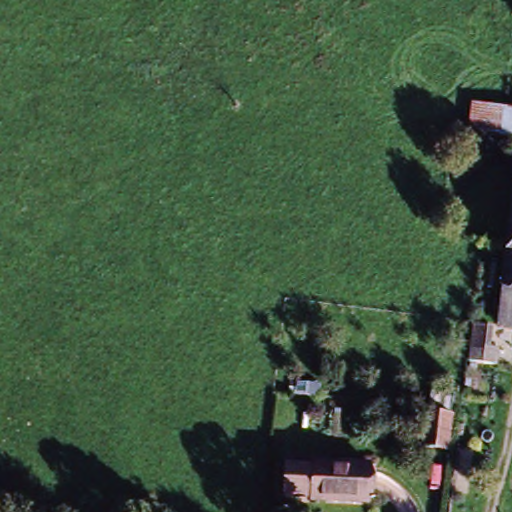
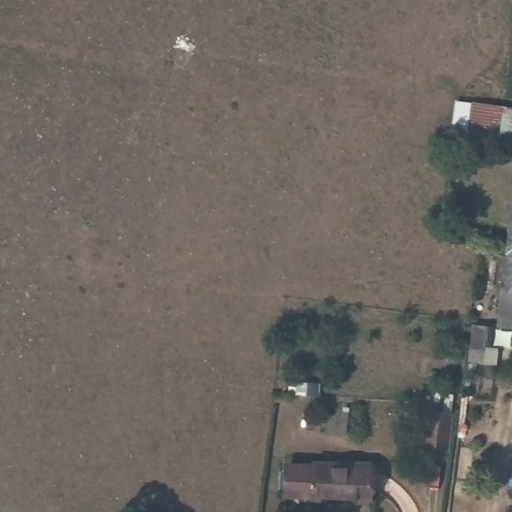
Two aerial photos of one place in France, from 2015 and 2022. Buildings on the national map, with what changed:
unchanged [(512,103),(512,134),(466,126),(470,97),(512,103)]
unchanged [(512,163),(512,254),(502,252),(495,251),(508,162),(512,163)]
unchanged [(495,310),(502,252),(512,254),(512,327),(492,324),(495,310)]
unchanged [(490,362),(460,358),(463,343),(465,321),(485,324),(483,345),(492,346),(490,362)]
unchanged [(411,463),(413,438),(415,429),(437,430),(436,440),(433,465),(411,463)]
unchanged [(287,466),(337,471),(340,458),(370,462),(365,500),(282,492),(287,466)]

